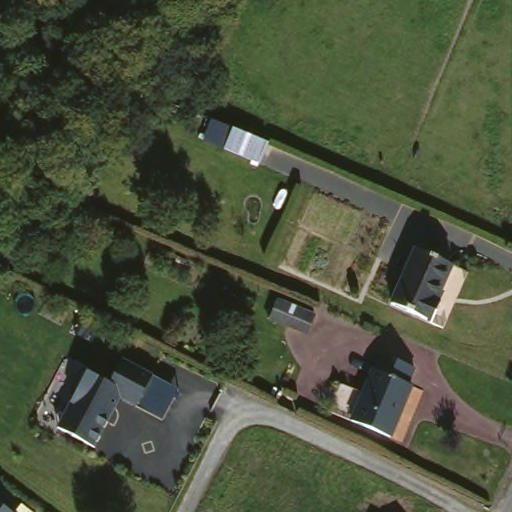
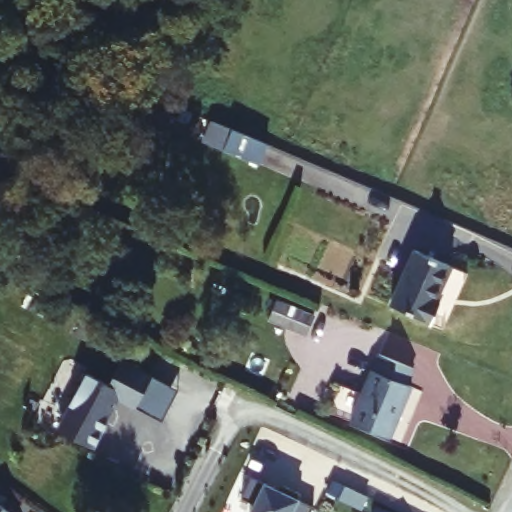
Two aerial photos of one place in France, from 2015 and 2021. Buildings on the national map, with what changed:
unchanged [(266,157),(230,142),(231,138),(212,130),(222,109),(240,117),(276,132),(266,157)]
unchanged [(431,302),(425,319),(385,303),(407,248),(442,262),(426,300),(431,302)]
unchanged [(260,316),(266,297),(305,309),(299,328),(260,316)]
unchanged [(351,426),(376,353),(412,365),(406,383),(410,385),(391,439),(351,426)]
unchanged [(85,370),(109,382),(120,360),(151,375),(175,389),(160,416),(139,406),(117,396),(94,445),(56,427),(85,370)]
new [(241,498),(251,477),(263,483),(297,500),(312,508),(311,512),(249,512),(252,505),(241,498)]
unchanged [(0,512),(0,506),(8,512),(0,512)]

